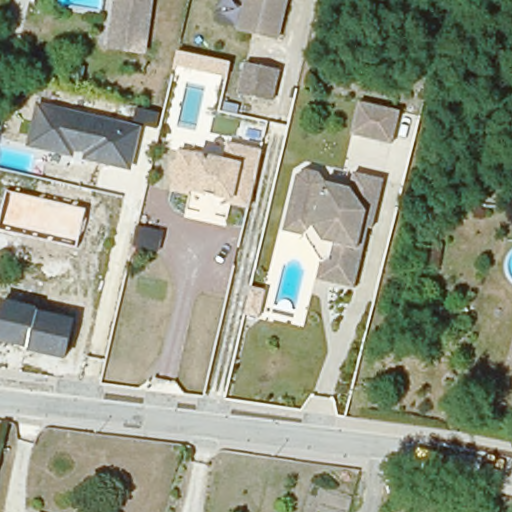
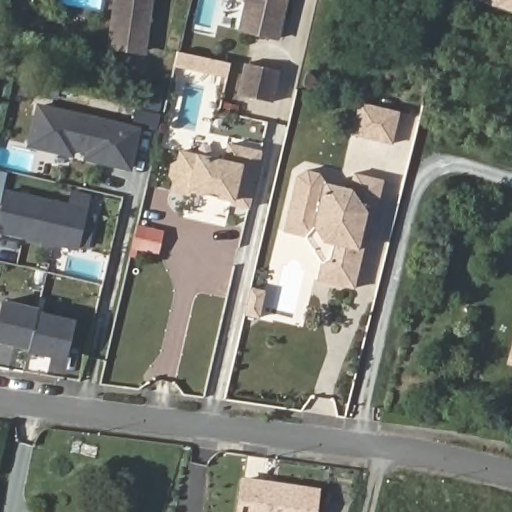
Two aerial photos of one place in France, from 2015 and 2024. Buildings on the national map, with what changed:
unchanged [(137,54),(106,48),(116,0),(148,0),(137,54)]
unchanged [(273,38),(237,29),(245,0),(284,0),(273,38)]
new [(493,0),(512,0),(512,12),(491,5),(493,0)]
unchanged [(40,85),(15,78),(21,51),(46,58),(40,85)]
unchanged [(228,77),(175,66),(179,52),(231,62),(228,77)]
unchanged [(275,70),(267,101),(234,92),(242,61),(275,70)]
unchanged [(401,110),(391,142),(352,130),(361,98),(401,110)]
unchanged [(85,154),(75,152),(74,157),(26,146),(37,103),(142,127),(131,171),(84,160),(85,154)]
unchanged [(249,206),(228,201),(229,197),(191,187),(190,190),(166,183),(170,172),(167,172),(172,151),(175,152),(177,142),(226,156),(230,141),(264,150),(249,206)]
unchanged [(295,179),(305,173),(318,177),(324,187),(348,194),(352,179),(381,187),(368,234),(365,232),(348,292),(325,286),(330,269),(322,267),(326,252),(322,251),(310,229),(283,222),(295,179)]
unchanged [(77,247),(0,229),(0,222),(7,191),(86,209),(77,247)]
unchanged [(155,255),(126,250),(134,224),(161,230),(155,255)]
unchanged [(264,292),(257,318),(242,314),(249,292),(250,287),(264,292)]
unchanged [(29,348),(0,342),(0,306),(1,300),(38,308),(37,310),(75,317),(67,360),(27,352),(29,348)]
unchanged [(512,351),(512,364),(509,363),(512,351)]
new [(321,493),(318,512),(242,512),(246,482),(321,493)]

